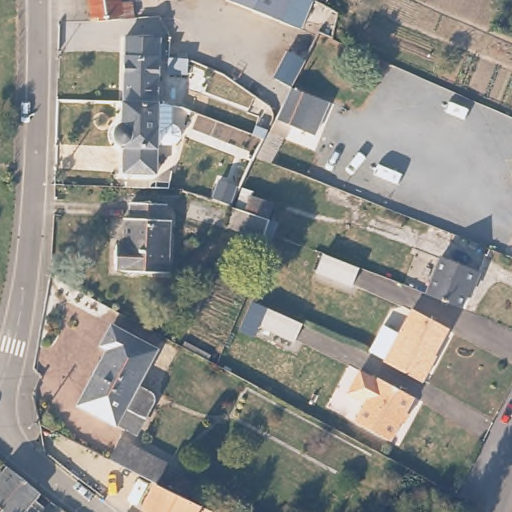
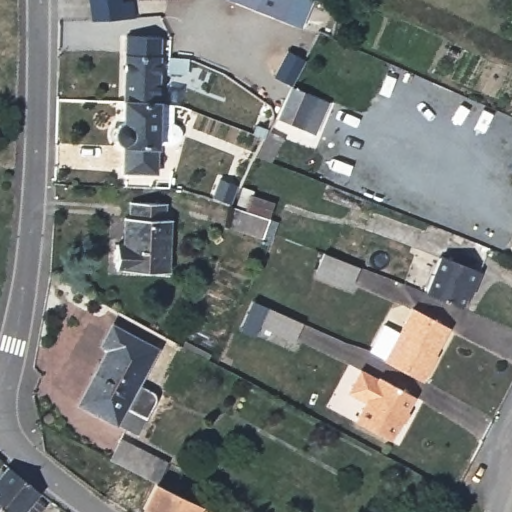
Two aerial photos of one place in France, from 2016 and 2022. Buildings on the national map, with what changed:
unchanged [(122,0),(127,0),(128,16),(90,19),(87,0),(116,0),(116,1),(122,0)]
unchanged [(272,23),(230,0),(295,0),(284,19),(277,14),(272,23)]
unchanged [(133,98),(127,98),(127,55),(128,37),(162,38),(162,56),(161,99),(153,99),(133,98)]
unchanged [(304,124),(287,118),(270,159),(257,154),(289,84),(272,79),(286,47),(306,58),(293,85),(315,95),(304,124)]
unchanged [(189,59),(187,73),(173,71),(173,58),(189,59)]
unchanged [(133,98),(153,99),(161,99),(173,100),(173,115),(183,123),(182,131),(170,139),(159,138),(157,168),(125,166),(124,146),(121,145),(118,141),(117,137),(118,131),(122,126),(126,121),(127,98),(133,98)]
unchanged [(213,199),(220,184),(239,193),(233,207),(213,199)]
unchanged [(260,240),(224,225),(233,207),(241,210),(249,189),(276,200),(269,220),(277,223),(269,244),(260,240)]
unchanged [(169,203),(169,219),(174,220),(173,269),(124,269),(124,264),(115,263),(115,245),(123,246),(124,218),(131,218),(131,202),(169,203)]
unchanged [(357,267),(349,286),(314,272),(321,253),(357,267)]
unchanged [(480,274),(474,289),(470,287),(468,292),(461,309),(425,294),(431,279),(440,257),(480,274)]
unchanged [(304,323),(295,342),(261,324),(254,339),(238,332),(253,299),(304,323)]
unchanged [(449,328),(431,360),(435,363),(424,384),(391,365),(384,362),(386,359),(371,352),(384,327),(400,334),(414,310),(449,328)]
unchanged [(147,348),(117,408),(135,418),(128,433),(71,403),(100,349),(93,345),(104,324),(147,348)]
unchanged [(379,379),(381,375),(416,394),(393,438),(357,419),(367,401),(348,389),(359,369),(379,379)]
unchanged [(165,461),(153,486),(105,462),(119,438),(165,461)]
unchanged [(3,469),(27,488),(36,494),(30,501),(40,508),(37,512),(0,512),(0,473),(3,469)]
unchanged [(207,512),(144,512),(156,487),(207,512)]

